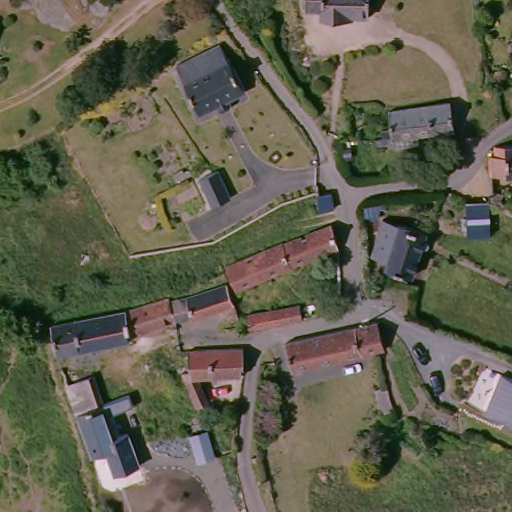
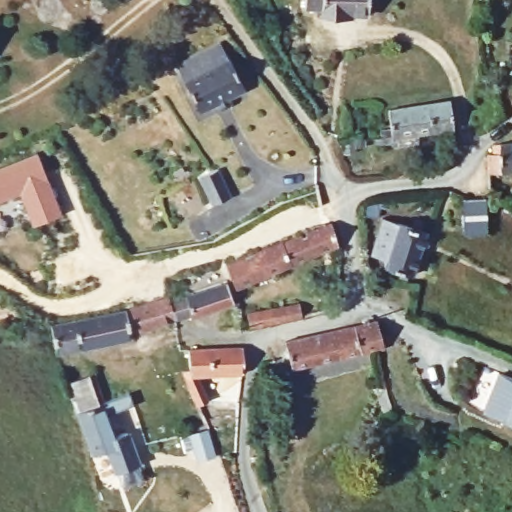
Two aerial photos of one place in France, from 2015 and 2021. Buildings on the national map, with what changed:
unchanged [(363,16),(363,20),(332,19),(333,10),(316,10),(316,0),(379,0),(378,16),(363,16)]
unchanged [(251,91),(206,113),(182,65),(226,44),(232,59),(234,58),(251,91)]
unchanged [(459,125),(423,130),(425,140),(398,143),(398,138),(383,140),(382,135),(388,134),(386,125),(396,124),(394,105),(426,101),(454,97),(459,125)]
unchanged [(496,180),(494,160),(498,160),(498,150),(512,149),(512,179),(496,180)]
new [(0,202),(0,168),(38,154),(63,214),(33,225),(19,194),(0,202)]
unchanged [(212,206),(201,178),(208,175),(219,170),(231,198),(223,201),(212,206)]
unchanged [(306,261),(233,291),(221,267),(266,247),(289,237),(318,227),(313,202),(313,195),(327,192),(331,221),(331,222),(331,223),(331,224),(329,225),(328,225),(336,248),(306,261)]
unchanged [(491,236),(468,236),(468,200),(489,200),(491,236)]
unchanged [(427,232),(414,276),(385,267),(387,261),(371,256),(383,220),(398,224),(398,222),(427,232)]
unchanged [(46,326),(73,321),(93,317),(121,312),(156,301),(163,299),(164,302),(181,297),(223,285),(230,305),(230,306),(188,320),(188,317),(170,322),(128,335),(128,340),(78,349),(61,352),(53,354),(46,326)]
unchanged [(301,305),(303,320),(251,330),(249,315),(301,305)]
unchanged [(371,325),(378,323),(386,351),(379,352),(291,371),(288,357),(286,345),(371,325)]
unchanged [(248,348),(248,376),(203,375),(214,402),(202,407),(187,372),(193,370),(193,350),(248,348)]
unchanged [(91,457),(76,413),(74,409),(65,385),(93,376),(101,405),(113,401),(118,412),(107,416),(119,448),(91,457)]
demolished [(422,409),(396,412),(393,382),(418,378),(422,409)]

